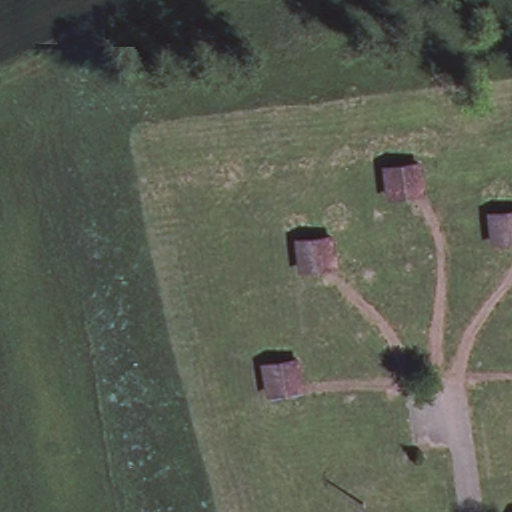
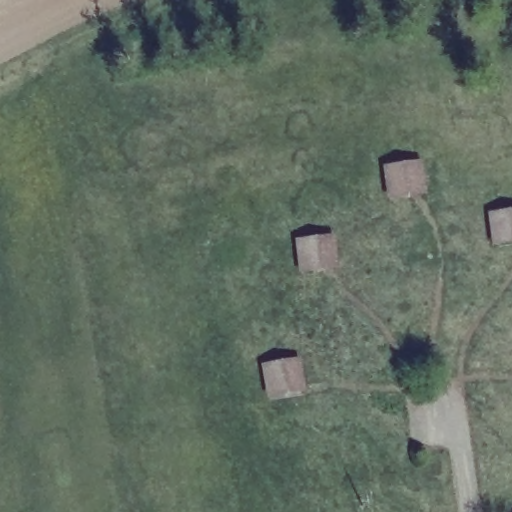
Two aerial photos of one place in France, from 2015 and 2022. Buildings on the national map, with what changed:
unchanged [(407,195),(405,188),(388,190),(385,168),(420,163),(423,193),(407,195)]
unchanged [(511,243),(510,235),(492,238),(489,216),(512,212),(512,243),(511,243)]
unchanged [(336,267),(319,270),(318,262),(300,265),(297,242),(332,237),(336,267)]
unchanged [(304,391),(287,394),(286,386),(268,389),(265,366),(300,361),(304,391)]

